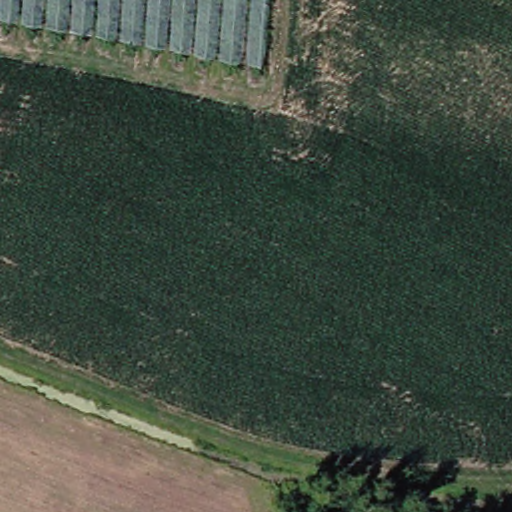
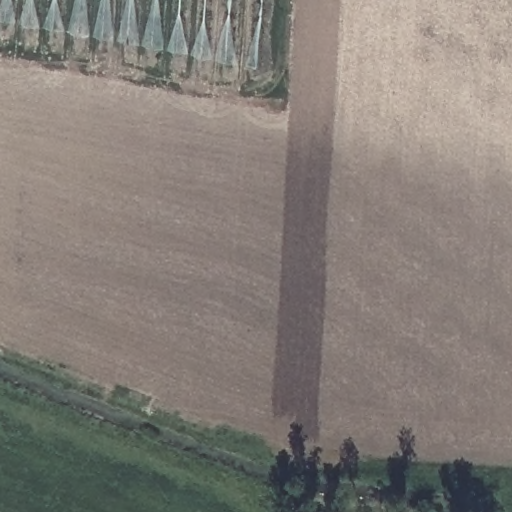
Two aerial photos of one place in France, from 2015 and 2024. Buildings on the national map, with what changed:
unchanged [(0,0),(268,0),(264,70),(0,21),(0,0)]

